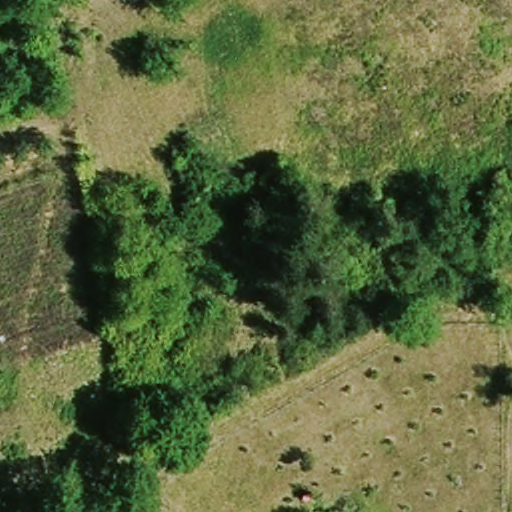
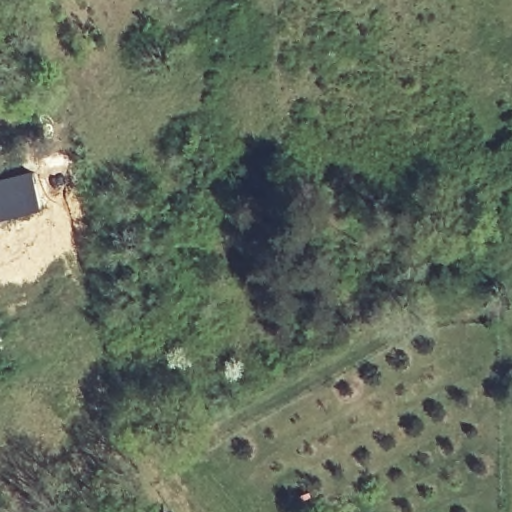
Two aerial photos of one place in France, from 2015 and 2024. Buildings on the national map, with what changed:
new [(0,219),(0,181),(35,171),(45,207),(0,219)]

